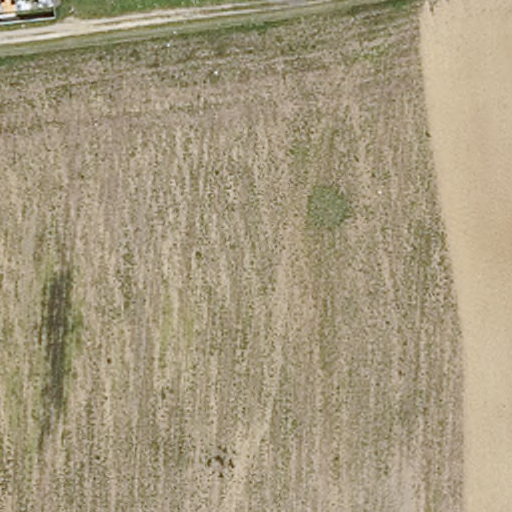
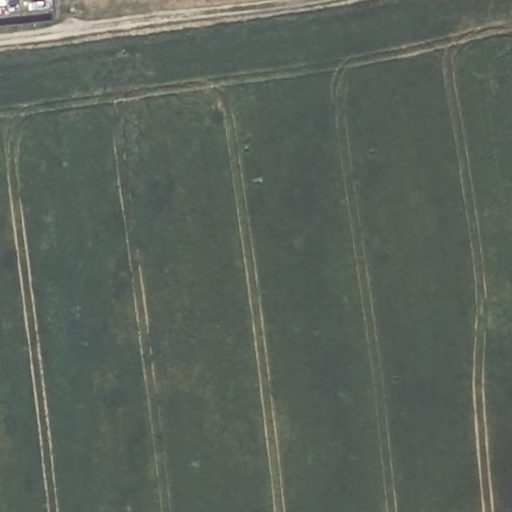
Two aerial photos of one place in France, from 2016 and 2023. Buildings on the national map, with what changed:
[]

